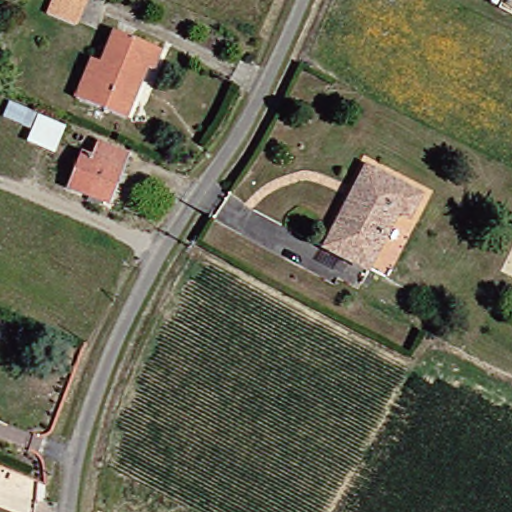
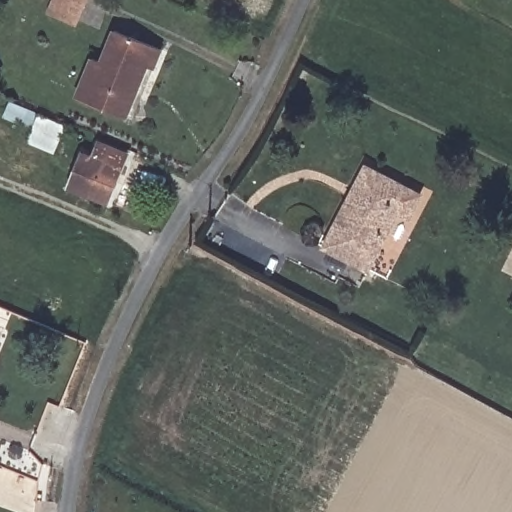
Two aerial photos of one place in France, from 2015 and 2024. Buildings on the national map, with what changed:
unchanged [(73,23),(46,11),(51,0),(83,0),(73,23)]
unchanged [(124,119),(76,99),(92,60),(107,66),(120,33),(166,52),(157,74),(145,69),(133,98),(124,119)]
unchanged [(14,98),(66,123),(55,150),(29,138),(35,126),(7,113),(14,98)]
unchanged [(81,155),(94,161),(101,142),(128,153),(108,199),(69,183),(81,155)]
unchanged [(422,198),(410,221),(399,215),(369,271),(329,250),(371,171),(422,198)]

